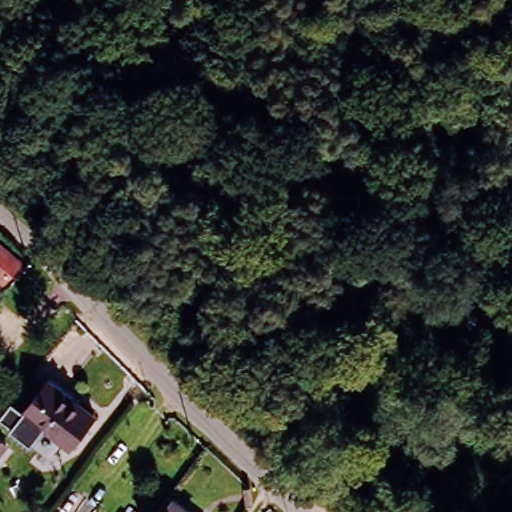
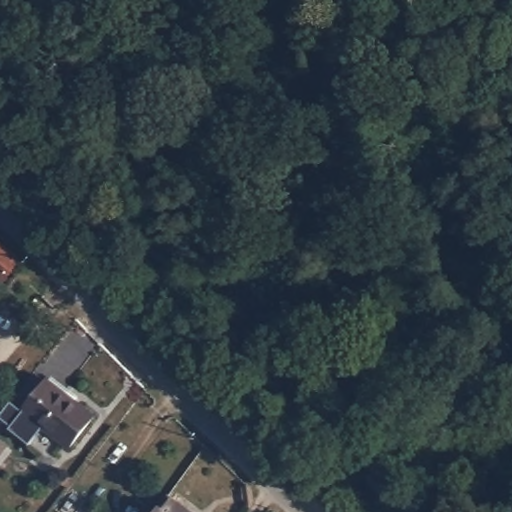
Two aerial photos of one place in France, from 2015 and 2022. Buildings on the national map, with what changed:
unchanged [(0,282),(0,249),(20,267),(5,286),(0,282)]
unchanged [(71,450),(47,431),(36,444),(15,428),(26,415),(15,407),(40,375),(50,384),(95,419),(71,450)]
unchanged [(0,453),(0,437),(8,443),(0,453)]
unchanged [(164,494),(187,512),(152,512),(164,494)]

